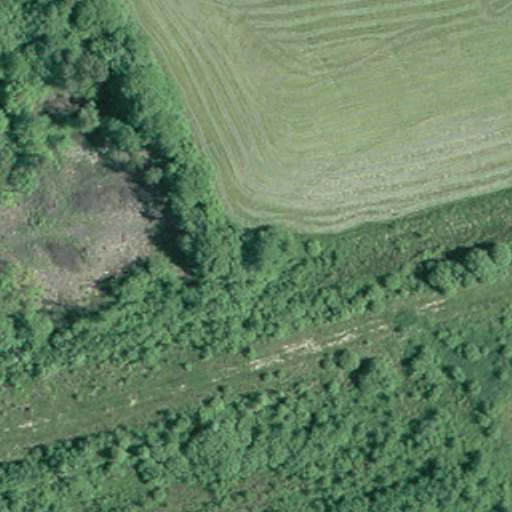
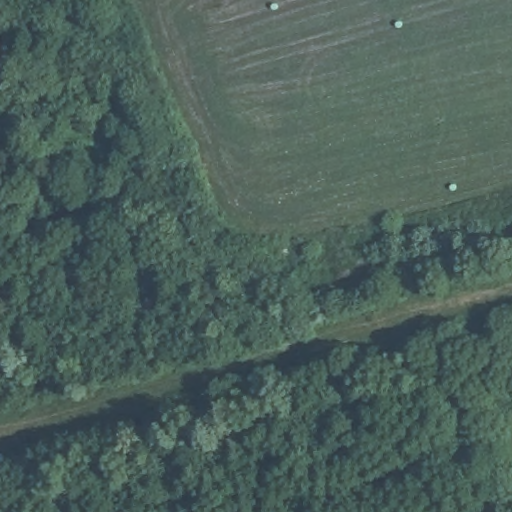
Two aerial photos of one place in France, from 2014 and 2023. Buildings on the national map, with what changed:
[]

